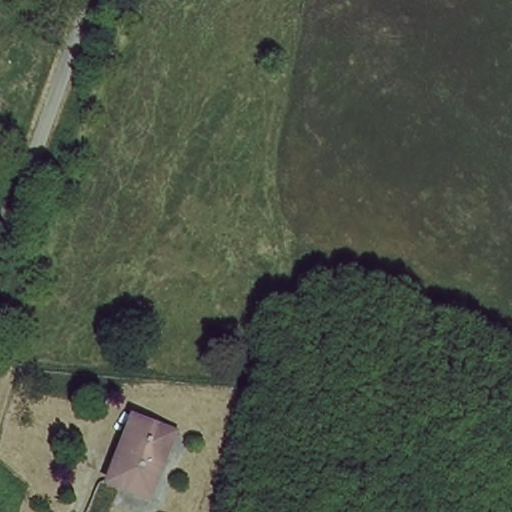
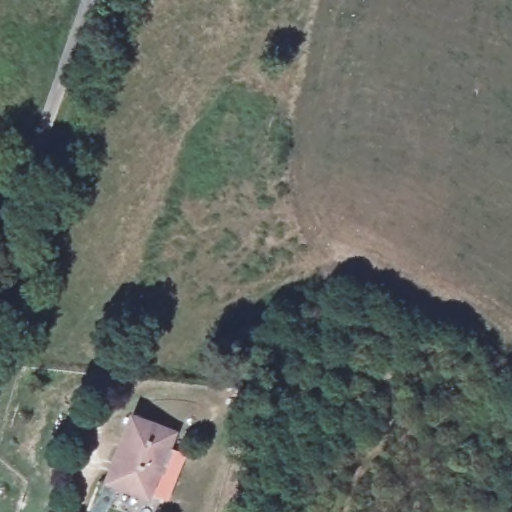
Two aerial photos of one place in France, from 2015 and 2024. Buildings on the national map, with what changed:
unchanged [(133,419),(174,436),(147,501),(107,485),(133,419)]

